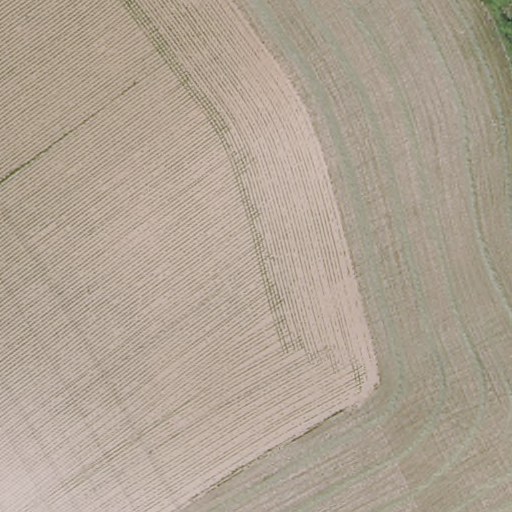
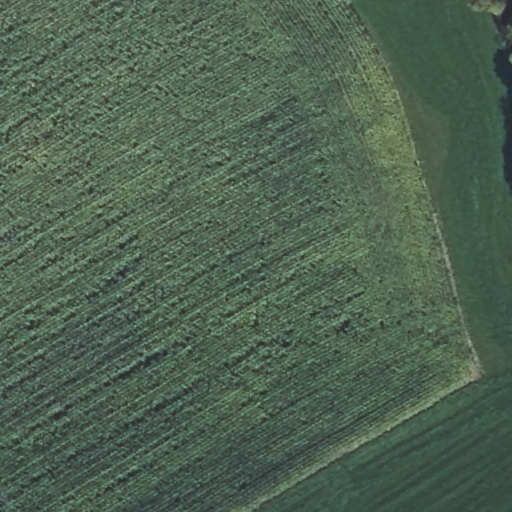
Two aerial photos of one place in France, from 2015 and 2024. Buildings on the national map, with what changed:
unchanged [(508,34),(512,32),(512,43),(508,34)]

